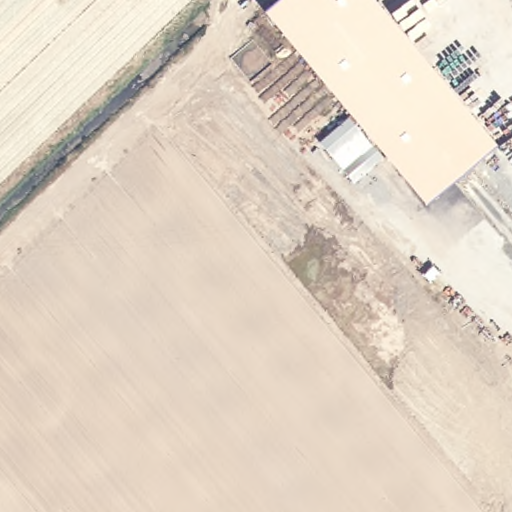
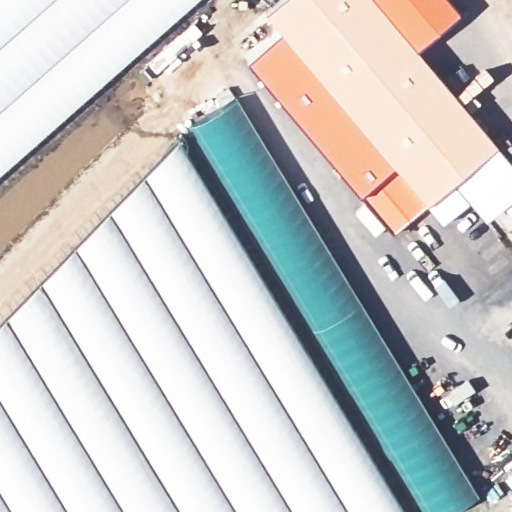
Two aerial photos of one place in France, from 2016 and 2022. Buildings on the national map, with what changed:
new [(0,0),(194,0),(0,172),(0,0)]
unchanged [(267,10),(279,0),(375,0),(495,149),(424,205),(267,10)]
new [(429,512),(193,124),(236,96),(478,493),(448,512),(429,512)]
new [(404,512),(0,512),(0,323),(178,140),(404,512)]
new [(495,149),(512,169),(512,195),(486,218),(455,181),(495,149)]

